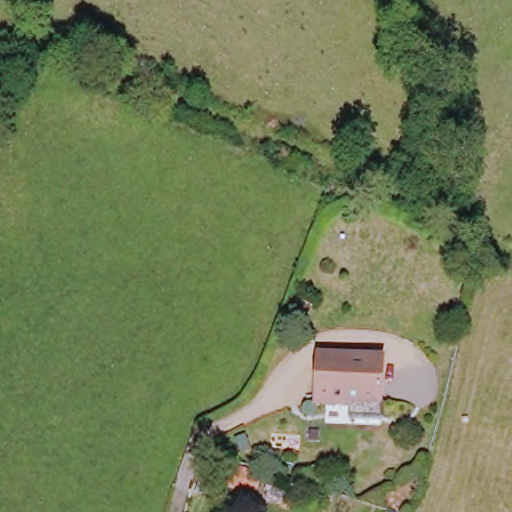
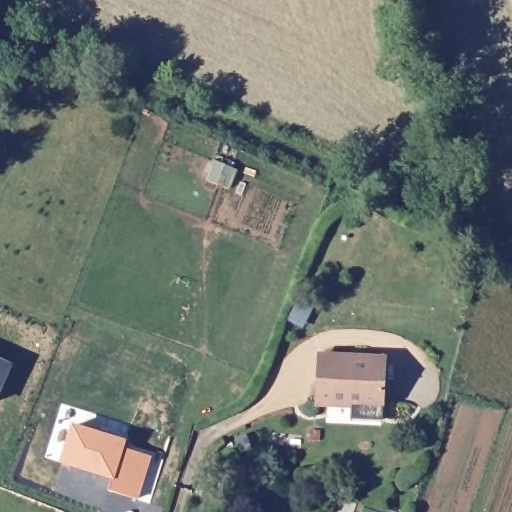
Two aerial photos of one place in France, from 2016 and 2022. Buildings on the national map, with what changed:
unchanged [(313,404),(322,355),(386,365),(380,409),(349,404),(349,410),(313,404)]
new [(11,363),(0,388),(0,358),(11,363)]
new [(125,442),(123,448),(150,456),(137,499),(109,490),(113,477),(63,462),(74,425),(125,442)]

